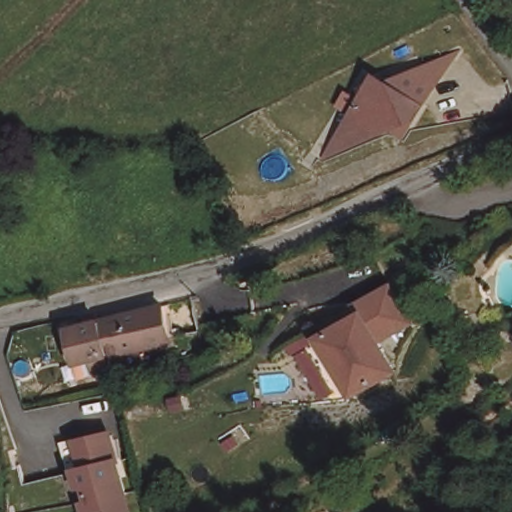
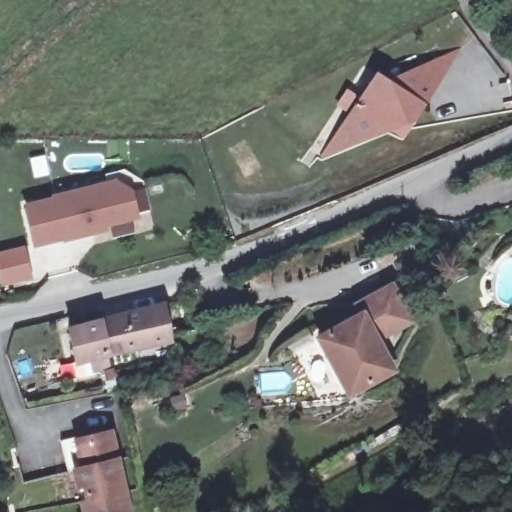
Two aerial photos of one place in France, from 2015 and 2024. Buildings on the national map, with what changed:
unchanged [(347,121),(372,78),(375,72),(387,79),(413,67),(450,51),(437,81),(419,120),(411,137),(392,129),(353,142),(329,150),(347,121)]
new [(115,179),(132,190),(145,189),(150,210),(139,211),(140,219),(107,226),(109,231),(64,243),(63,241),(33,249),(22,203),(52,196),(52,194),(115,179)]
new [(32,280),(0,287),(0,285),(0,250),(25,245),(32,280)]
unchanged [(417,324),(384,340),(400,375),(345,405),(312,336),(340,322),(334,309),(395,280),(417,324)]
unchanged [(160,302),(169,330),(109,348),(97,320),(160,302)]
unchanged [(104,350),(107,362),(95,365),(92,354),(77,358),(65,330),(97,320),(109,348),(104,350)]
unchanged [(117,365),(120,375),(125,386),(114,389),(106,368),(117,365)]
unchanged [(85,505),(81,490),(75,472),(70,474),(62,444),(76,440),(77,445),(112,435),(119,461),(113,463),(117,478),(123,476),(127,493),(122,495),(127,512),(87,512),(85,505)]

